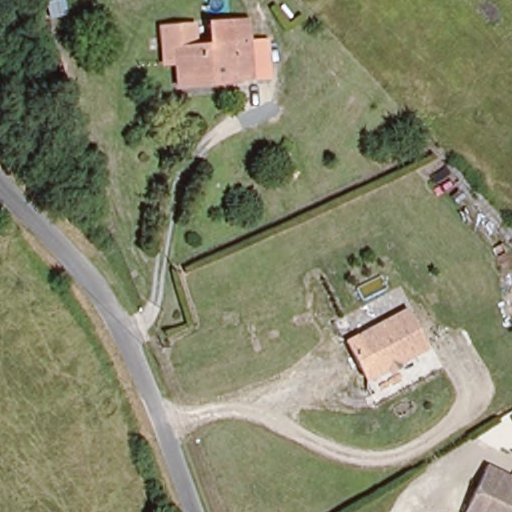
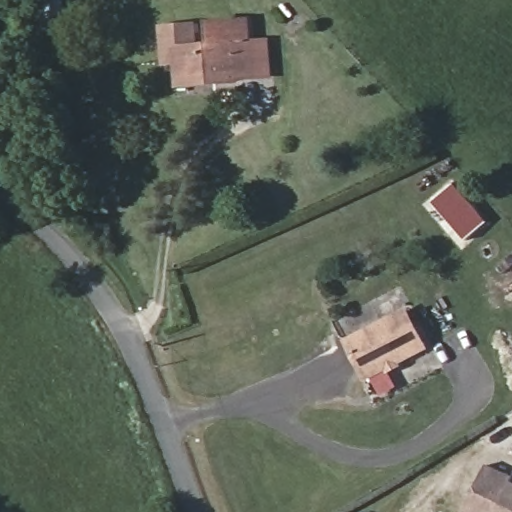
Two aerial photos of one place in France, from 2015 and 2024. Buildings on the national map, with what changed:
unchanged [(176,78),(174,62),(161,63),(157,28),(189,24),(192,46),(205,44),(203,22),(229,18),(243,16),(245,39),(249,72),(239,72),(233,79),(214,81),(177,86),(176,78)]
new [(488,222),(465,242),(432,204),(454,184),(488,222)]
unchanged [(421,348),(391,365),(393,368),(384,372),(381,368),(361,380),(344,344),(402,313),(421,348)]
unchanged [(470,489),(482,461),(500,468),(511,473),(510,477),(512,478),(512,512),(459,512),(465,501),(470,489)]

